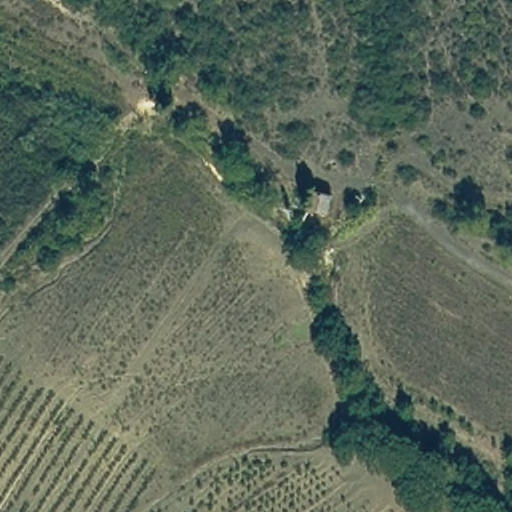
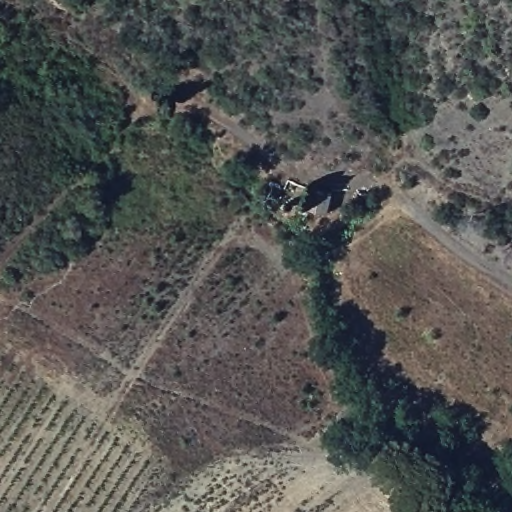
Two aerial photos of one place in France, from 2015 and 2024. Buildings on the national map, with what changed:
unchanged [(315,191),(333,196),(329,214),(312,210),(315,191)]

